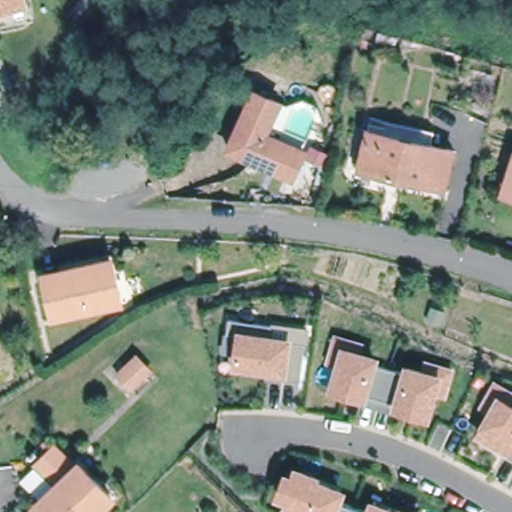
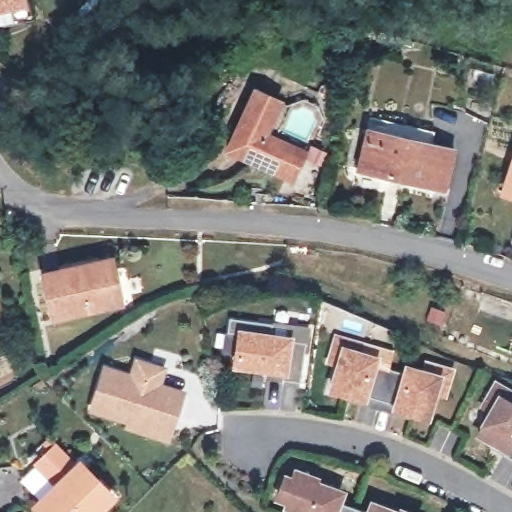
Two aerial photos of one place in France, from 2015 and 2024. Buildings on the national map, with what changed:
unchanged [(0,15),(0,0),(27,0),(29,9),(0,15)]
unchanged [(280,102),(265,135),(305,153),(293,180),(227,150),(254,90),(280,102)]
unchanged [(437,189),(354,170),(363,131),(365,122),(381,126),(382,120),(429,130),(426,145),(446,150),(437,189)]
unchanged [(329,152),(324,166),(306,159),(311,145),(329,152)]
unchanged [(504,194),(512,170),(512,196),(504,194)]
unchanged [(119,305),(53,320),(43,275),(109,260),(119,305)]
unchanged [(300,377),(281,375),(282,366),(235,360),(236,346),(224,345),(226,327),(228,313),(271,319),(269,332),(305,337),(300,377)]
unchanged [(368,368),(401,377),(402,372),(418,377),(421,367),(446,375),(439,400),(428,397),(421,422),(390,413),(391,410),(359,400),(358,404),(326,395),(334,370),(323,367),(331,341),(356,348),(353,358),(370,363),(368,368)]
demolished [(132,388),(118,373),(136,356),(150,370),(132,388)]
new [(168,366),(163,384),(185,390),(169,443),(123,430),(125,423),(87,411),(101,363),(129,372),(133,357),(168,366)]
unchanged [(503,455),(506,450),(478,434),(491,411),(482,406),(495,382),(512,392),(512,459),(503,455)]
unchanged [(36,507),(58,485),(37,463),(54,446),(76,468),(79,465),(111,497),(97,512),(41,512),(36,507)]
unchanged [(294,506),(282,502),(290,483),(301,487),(303,482),(346,498),(343,506),(358,512),(292,512),(294,506)]
unchanged [(377,510),(384,512),(377,512),(377,510)]

